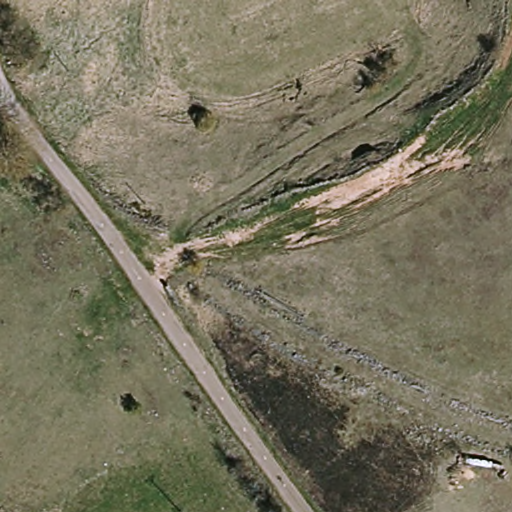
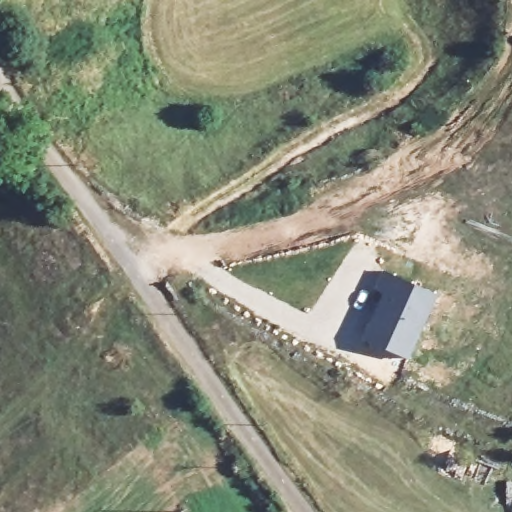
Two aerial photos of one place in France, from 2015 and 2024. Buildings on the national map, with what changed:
new [(409,358),(363,337),(383,292),(375,288),(383,270),(392,273),(438,295),(409,358)]

